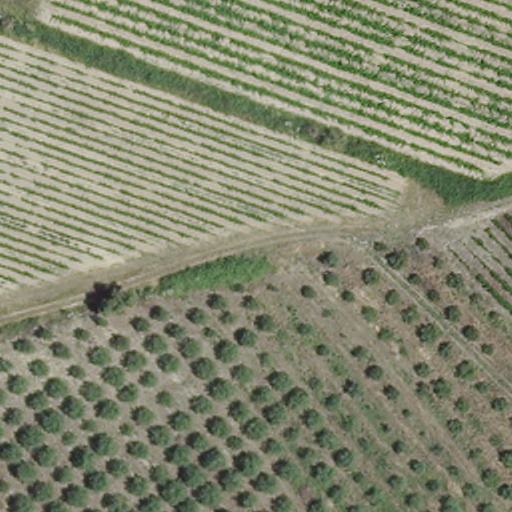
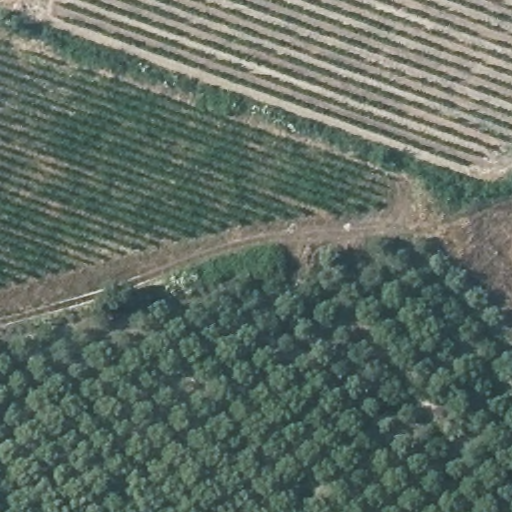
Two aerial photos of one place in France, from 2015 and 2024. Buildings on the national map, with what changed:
[]

